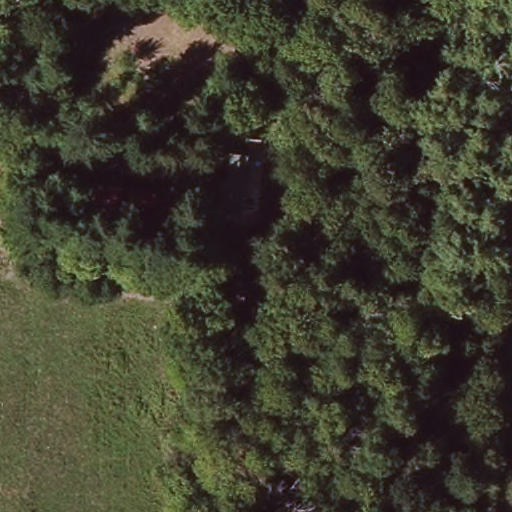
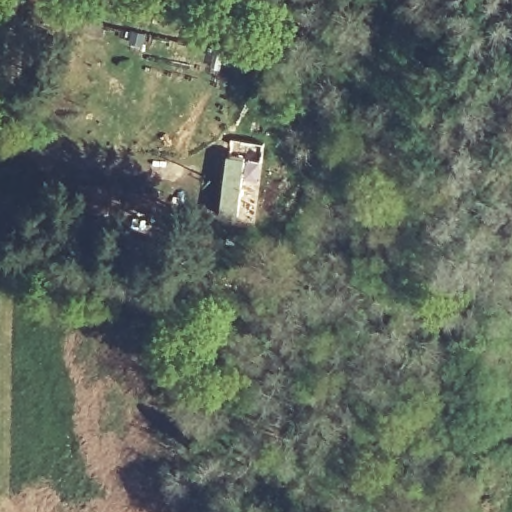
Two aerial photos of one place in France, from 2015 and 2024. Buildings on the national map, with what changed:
new [(223,214),(230,152),(248,156),(241,216),(223,214)]
demolished [(247,169),(245,199),(225,197),(227,167),(247,169)]

